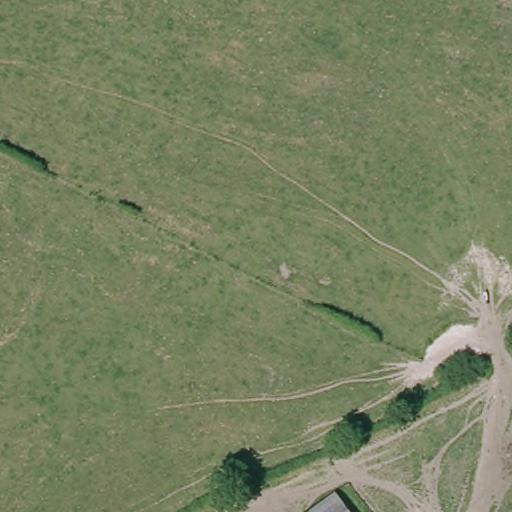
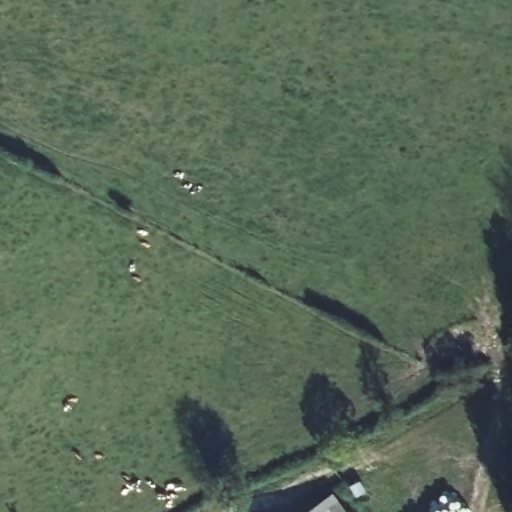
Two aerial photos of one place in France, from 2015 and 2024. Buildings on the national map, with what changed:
unchanged [(344,512),(320,512),(335,501),(344,512)]

